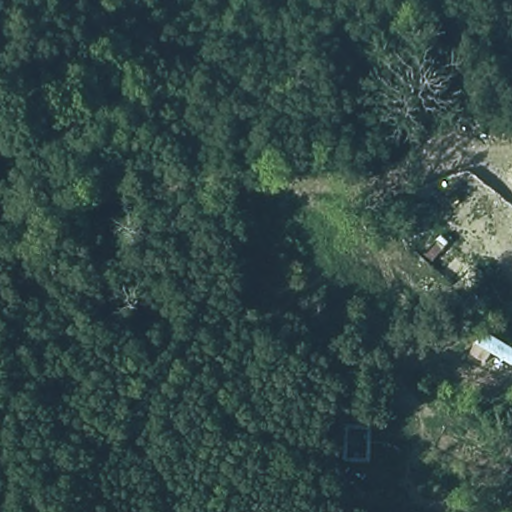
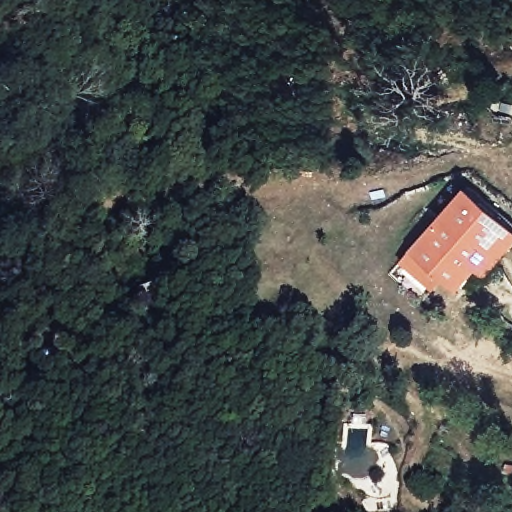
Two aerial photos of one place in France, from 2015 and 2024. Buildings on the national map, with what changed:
new [(476,270),(454,291),(443,279),(430,292),(400,262),(474,187),(512,225),(512,252),(485,280),(476,270)]
demolished [(508,237),(466,291),(413,252),(457,198),(508,237)]

